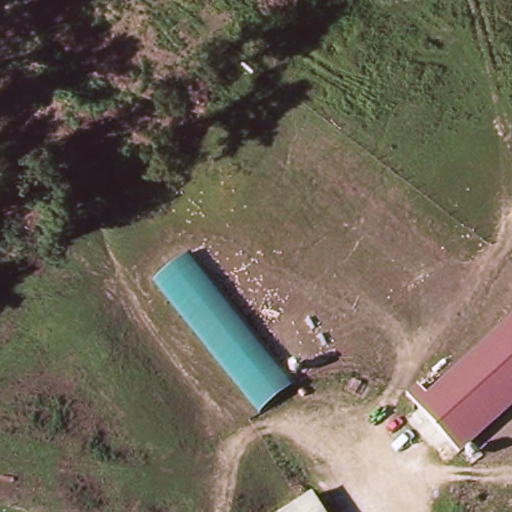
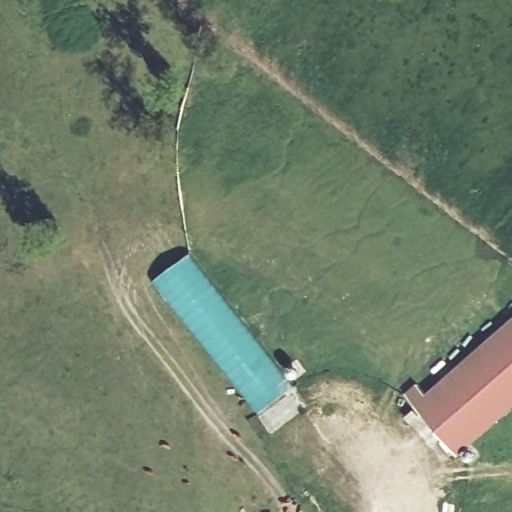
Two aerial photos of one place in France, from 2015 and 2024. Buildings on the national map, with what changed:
unchanged [(194,250),(296,384),(262,411),(159,277),(194,250)]
unchanged [(405,389),(417,379),(427,391),(458,364),(471,352),(512,318),(512,401),(457,448),(405,389)]
unchanged [(313,494),(325,512),(283,512),(307,498),(313,494)]

